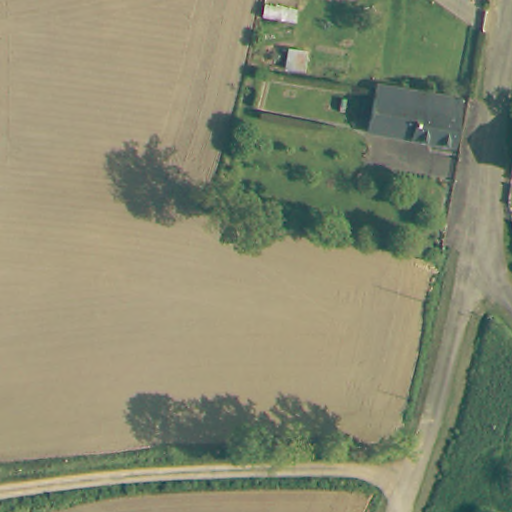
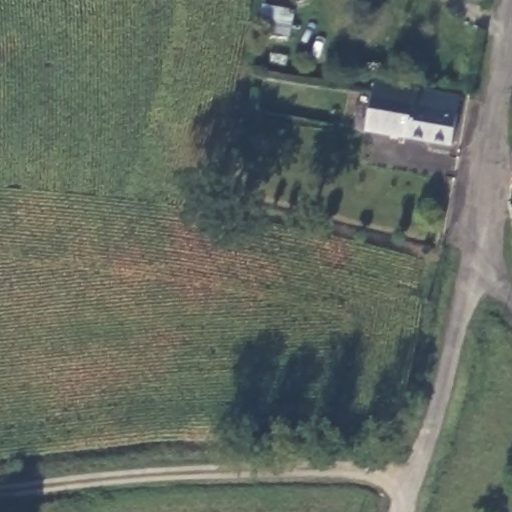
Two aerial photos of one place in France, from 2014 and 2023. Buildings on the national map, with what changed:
unchanged [(461,98),(454,145),(372,131),(379,86),(461,98)]

